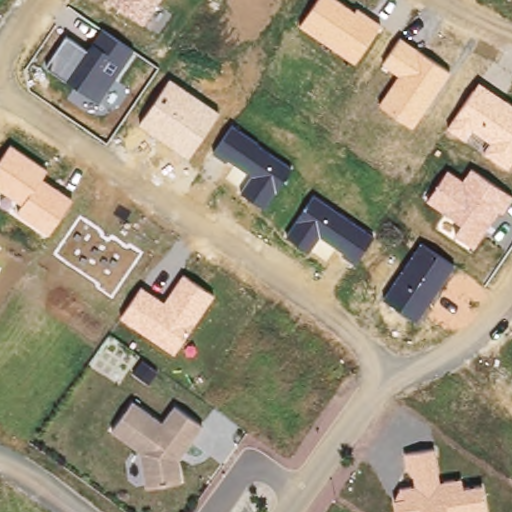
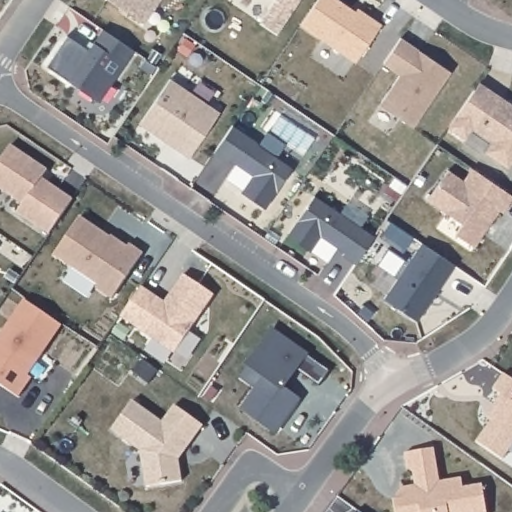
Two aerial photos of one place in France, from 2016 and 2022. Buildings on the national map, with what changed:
unchanged [(160,0),(143,25),(106,0),(160,0)]
new [(260,22),(275,0),(299,0),(276,33),(260,22)]
unchanged [(316,0),(338,0),(355,12),(358,7),(381,24),(353,64),(299,24),(316,0)]
unchanged [(47,66),(66,35),(87,50),(92,43),(102,28),(134,50),(98,100),(47,66)]
unchanged [(378,105),(398,75),(381,64),(400,36),(450,71),(411,128),(378,105)]
unchanged [(169,79),(218,112),(189,157),(138,124),(169,79)]
unchanged [(490,142),(472,130),(465,140),(447,127),(478,81),(512,105),(512,162),(508,168),(484,151),(490,142)]
unchanged [(240,192),(252,175),(228,157),(225,161),(212,152),(234,124),(292,167),(262,209),(240,192)]
unchanged [(11,145),(48,170),(42,178),(72,199),(48,232),(17,210),(23,203),(0,189),(0,161),(11,145)]
unchanged [(442,212),(426,201),(447,170),(462,180),(471,167),(512,195),(512,199),(502,214),(498,211),(475,248),(454,235),(462,224),(442,212)]
unchanged [(341,255),(343,252),(320,235),(308,250),(286,234),(314,195),(373,235),(354,263),(341,255)]
new [(102,231),(109,237),(111,235),(127,246),(129,244),(142,253),(111,299),(95,288),(97,285),(53,255),(80,216),(102,231)]
unchanged [(382,298),(422,242),(454,264),(416,320),(382,298)]
unchanged [(120,316),(141,285),(164,301),(183,273),(215,295),(173,352),(120,316)]
new [(24,300),(62,325),(27,376),(30,378),(17,397),(0,384),(0,335),(24,300)]
new [(267,377),(249,365),(273,330),(331,370),(321,385),(298,369),(284,388),(300,400),(278,433),(245,410),(267,377)]
new [(493,406),(501,395),(493,389),(504,373),(512,379),(512,445),(502,459),(476,441),(491,420),(486,416),(493,406)]
unchanged [(161,423),(174,406),(203,427),(178,462),(182,490),(146,493),(142,457),(106,434),(131,398),(161,423)]
unchanged [(395,495),(402,486),(414,485),(412,471),(406,470),(403,453),(433,450),(437,480),(462,477),(464,487),(486,485),(487,512),(396,512),(395,495)]
new [(357,510),(359,512),(356,512),(357,510)]

